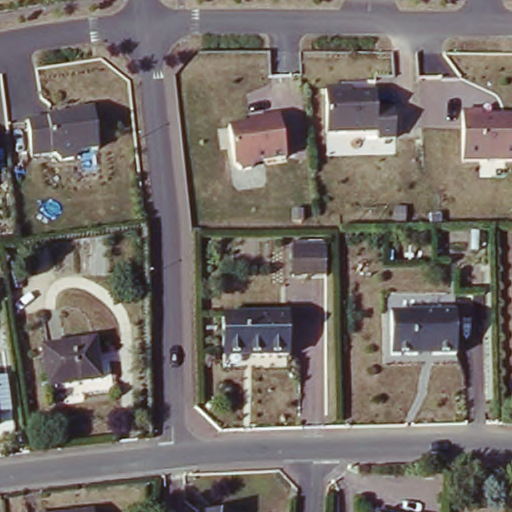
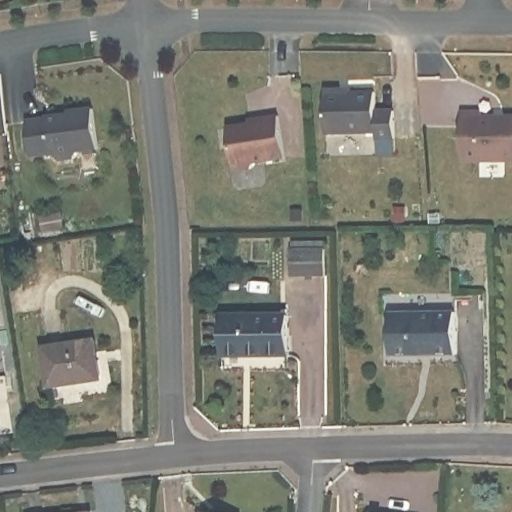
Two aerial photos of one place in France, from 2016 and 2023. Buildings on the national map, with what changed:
unchanged [(376,90),(378,131),(326,133),(326,90),(376,90)]
unchanged [(94,109),(100,145),(31,155),(29,119),(94,109)]
unchanged [(512,161),(463,164),(464,112),(512,113),(512,161)]
unchanged [(279,115),(285,154),(235,165),(227,126),(279,115)]
unchanged [(322,239),(323,273),(291,273),(292,239),(322,239)]
unchanged [(293,317),(293,360),(227,360),(226,319),(293,317)]
unchanged [(460,317),(461,359),(394,358),(394,317),(460,317)]
unchanged [(101,340),(106,381),(56,386),(50,346),(101,340)]
unchanged [(0,426),(0,376),(10,375),(15,411),(1,412),(2,419),(3,425),(0,426)]

